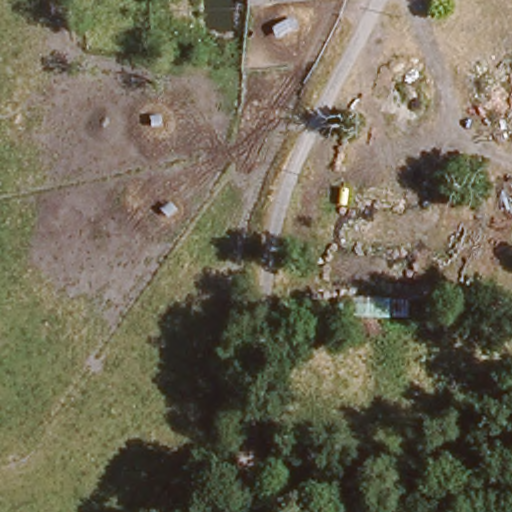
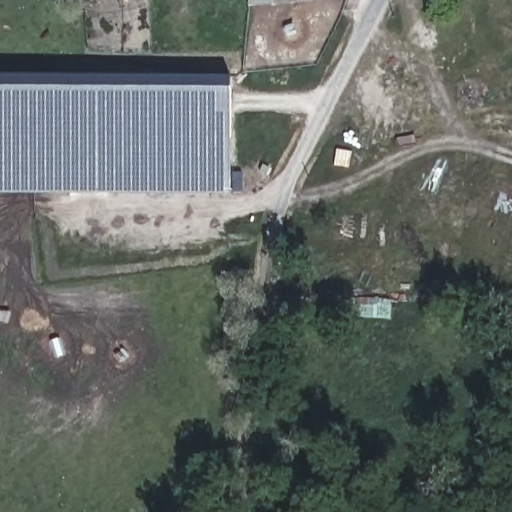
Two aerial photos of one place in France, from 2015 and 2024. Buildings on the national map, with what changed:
unchanged [(247,10),(249,0),(325,0),(247,10)]
new [(230,76),(229,174),(240,174),(241,192),(230,193),(0,193),(0,76),(230,76)]

